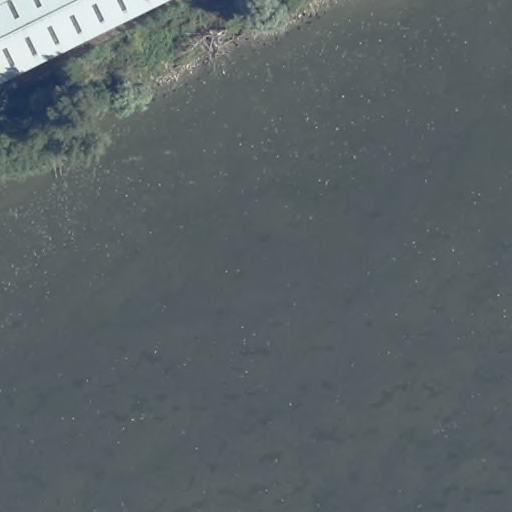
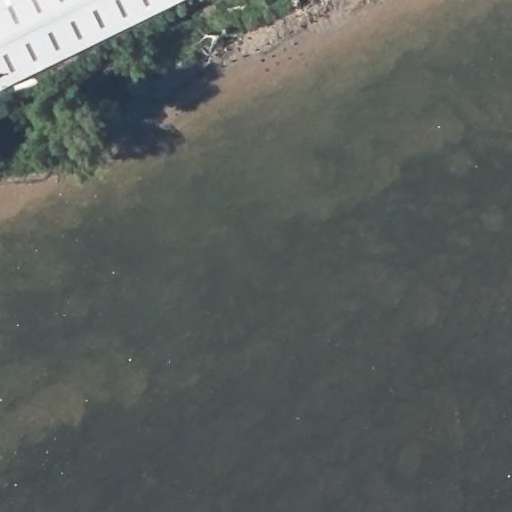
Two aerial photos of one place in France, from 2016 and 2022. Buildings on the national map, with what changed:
unchanged [(0,0),(174,0),(0,85),(0,0)]

